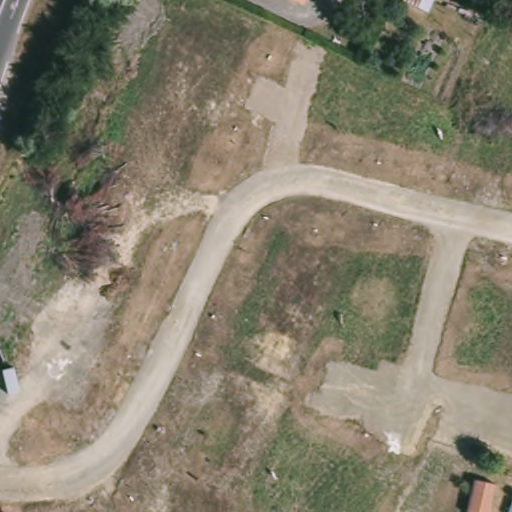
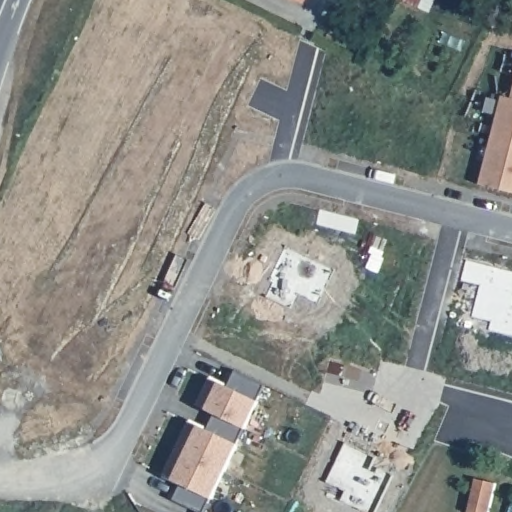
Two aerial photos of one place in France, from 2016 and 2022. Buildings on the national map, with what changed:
unchanged [(302,0),(306,0),(305,1),(302,0)]
unchanged [(420,6),(407,0),(423,0),(420,6)]
new [(491,140),(501,101),(491,98),(493,94),(502,96),(511,98),(512,99),(512,193),(479,184),(489,145),(480,142),(481,138),(491,140)]
new [(512,99),(511,98),(512,95),(512,99)]
new [(209,378),(227,386),(235,371),(264,385),(257,401),(258,401),(245,428),(244,428),(214,414),(196,405),(209,378)]
new [(188,421),(206,429),(214,414),(244,428),(236,444),(237,444),(224,471),(176,448),(188,421)]
new [(224,471),(211,499),(210,498),(204,512),(197,512),(173,500),(180,484),(162,475),(176,448),(224,471)]
unchanged [(491,512),(469,512),(475,486),(477,479),(498,484),(491,512)]

